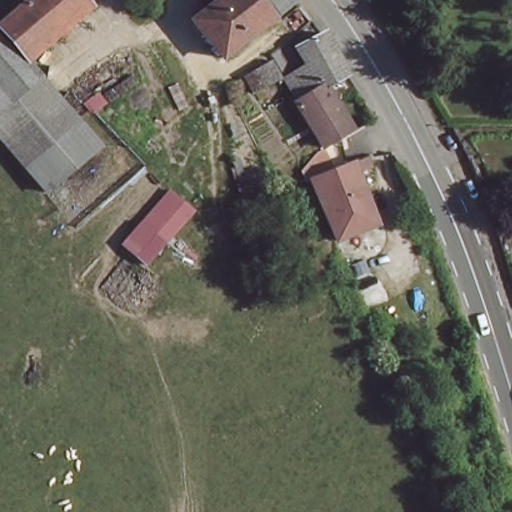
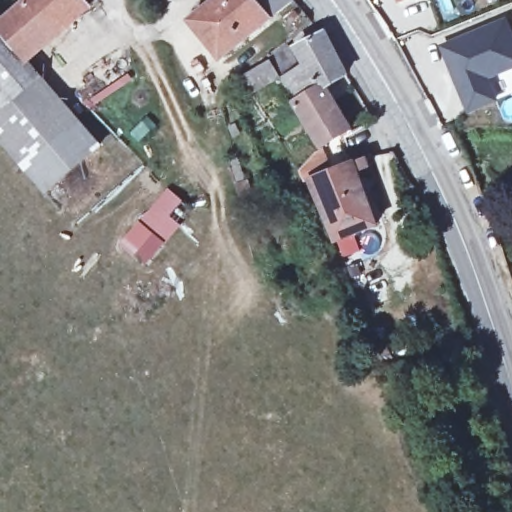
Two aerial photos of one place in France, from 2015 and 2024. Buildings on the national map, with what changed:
unchanged [(77,0),(81,5),(45,34),(18,5),(24,0),(77,0)]
unchanged [(283,0),(287,6),(217,62),(187,27),(218,0),(283,0)]
new [(396,0),(404,0),(397,2),(396,0)]
unchanged [(45,34),(19,55),(38,77),(0,109),(0,21),(18,5),(45,34)]
new [(512,32),(512,69),(489,79),(498,102),(467,116),(437,47),(505,16),(512,32)]
unchanged [(308,65),(300,48),(320,36),(325,34),(348,78),(327,88),(340,112),(350,132),(318,148),(295,107),(293,104),(290,99),(280,80),(295,72),(302,69),(308,65)]
unchanged [(253,94),(242,77),(270,62),(285,45),(287,44),(302,69),(295,72),(280,80),(253,94)]
unchanged [(98,145),(43,190),(0,140),(0,109),(38,77),(60,102),(98,145)]
unchanged [(370,168),(357,176),(377,227),(336,244),(310,184),(340,171),(367,160),(370,168)]
unchanged [(143,267),(117,247),(165,189),(192,210),(143,267)]
unchanged [(334,251),(357,242),(367,263),(344,273),(341,266),(340,262),(334,251)]

